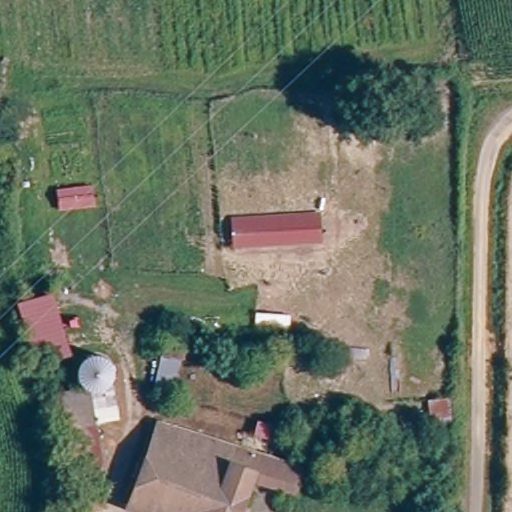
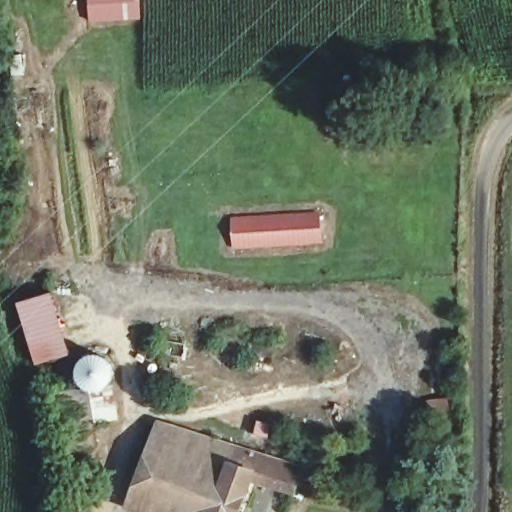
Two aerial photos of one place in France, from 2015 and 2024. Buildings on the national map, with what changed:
new [(140,19),(88,21),(87,0),(139,0),(140,19)]
unchanged [(321,211),(322,242),(232,247),(230,216),(321,211)]
unchanged [(47,292),(69,354),(40,364),(19,302),(47,292)]
unchanged [(77,348),(93,343),(108,348),(116,362),(116,376),(106,391),(89,393),(74,385),(69,364),(77,348)]
unchanged [(101,400),(108,429),(85,436),(92,462),(95,472),(71,480),(68,464),(56,410),(101,400)]
unchanged [(226,442),(227,444),(233,446),(304,465),(299,496),(251,485),(243,512),(169,512),(131,501),(151,437),(154,426),(226,442)]

